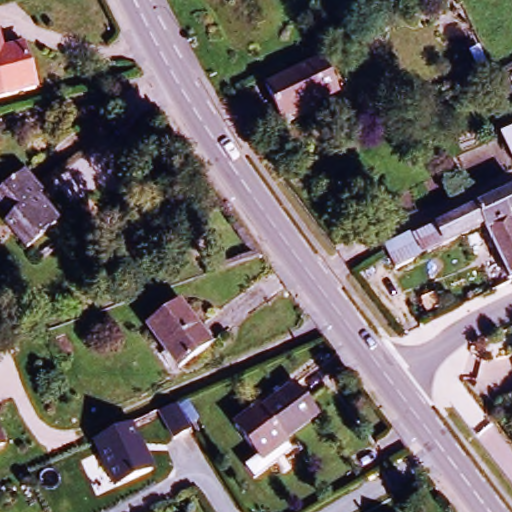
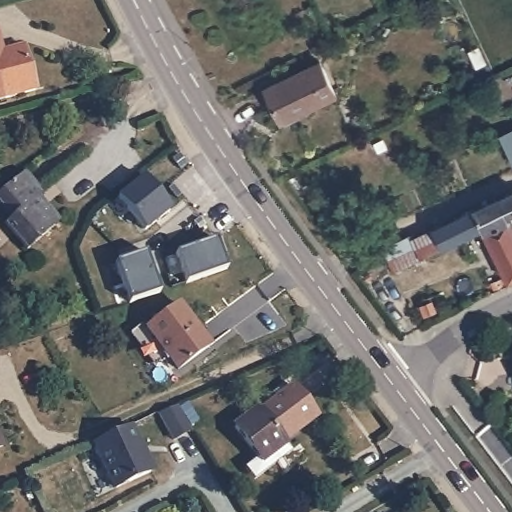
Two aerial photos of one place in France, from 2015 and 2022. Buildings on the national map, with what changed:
unchanged [(33,93),(0,103),(0,56),(21,50),(33,93)]
unchanged [(322,66),(338,100),(286,124),(270,92),(322,66)]
new [(512,130),(512,157),(501,135),(512,130)]
new [(146,231),(127,205),(125,205),(115,192),(140,172),(159,195),(171,211),(146,231)]
unchanged [(36,237),(34,238),(27,240),(19,242),(18,242),(7,230),(13,225),(15,223),(14,222),(0,207),(0,199),(1,198),(25,177),(42,197),(45,200),(42,202),(37,207),(52,224),(59,231),(39,237),(36,237)]
unchanged [(512,186),(512,213),(482,229),(426,256),(399,269),(389,247),(415,234),(512,186)]
unchanged [(506,282),(482,229),(512,213),(512,279),(506,282)]
new [(217,240),(227,269),(187,283),(177,254),(217,240)]
new [(147,252),(161,292),(132,303),(117,262),(147,252)]
unchanged [(180,310),(205,352),(170,373),(145,332),(180,310)]
unchanged [(292,397),(315,427),(275,454),(254,423),(292,397)]
unchanged [(132,422),(154,471),(115,487),(91,441),(132,422)]
unchanged [(0,454),(0,435),(7,451),(0,454)]

